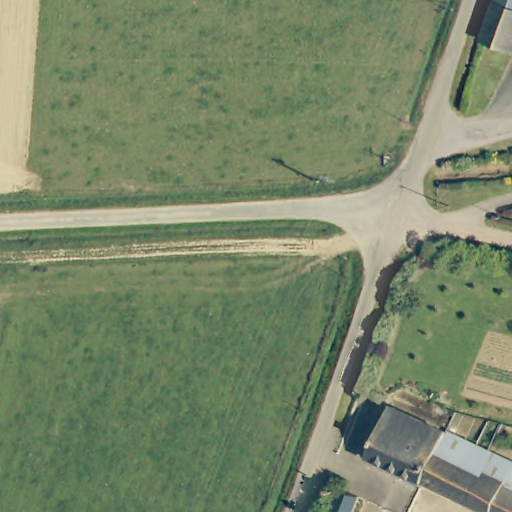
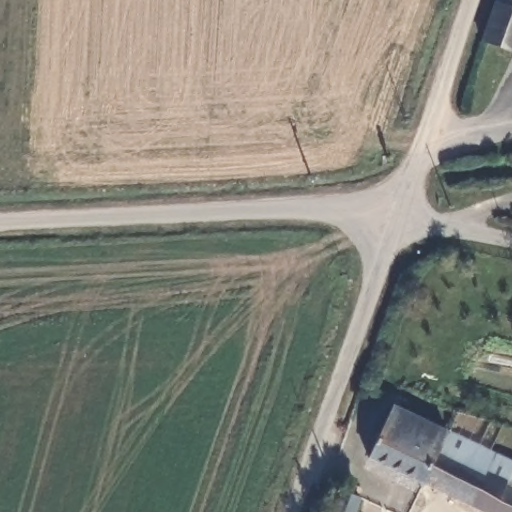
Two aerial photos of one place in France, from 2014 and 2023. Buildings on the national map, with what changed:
unchanged [(512,1),(512,44),(493,37),(483,35),(495,0),(510,0),(512,1)]
unchanged [(510,0),(512,0),(512,1),(510,0)]
unchanged [(397,407),(439,425),(501,453),(512,458),(512,512),(492,512),(373,458),(397,407)]
unchanged [(352,512),(329,512),(341,486),(360,493),(352,512)]

